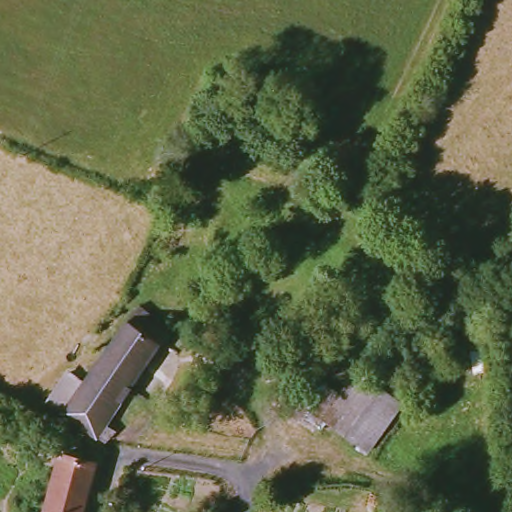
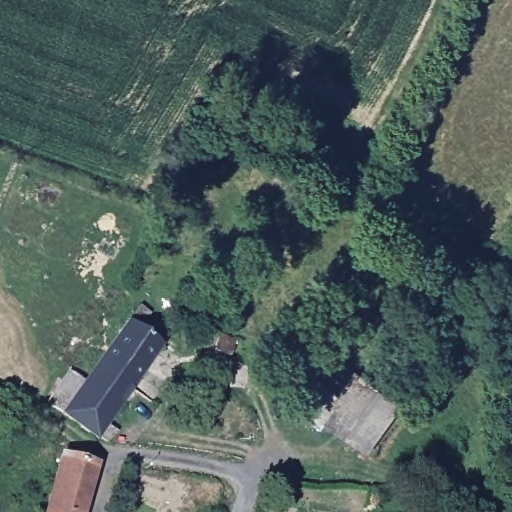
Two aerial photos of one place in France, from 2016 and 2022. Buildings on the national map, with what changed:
unchanged [(115,431),(105,442),(98,436),(96,438),(63,414),(63,413),(48,404),(70,373),(85,384),(139,307),(150,315),(147,319),(146,323),(156,326),(168,335),(105,425),(115,431)]
unchanged [(213,350),(220,336),(234,342),(228,356),(213,350)]
unchanged [(358,372),(402,404),(368,451),(328,422),(324,419),(341,396),(358,372)]
unchanged [(97,463),(84,512),(45,512),(61,455),(97,463)]

